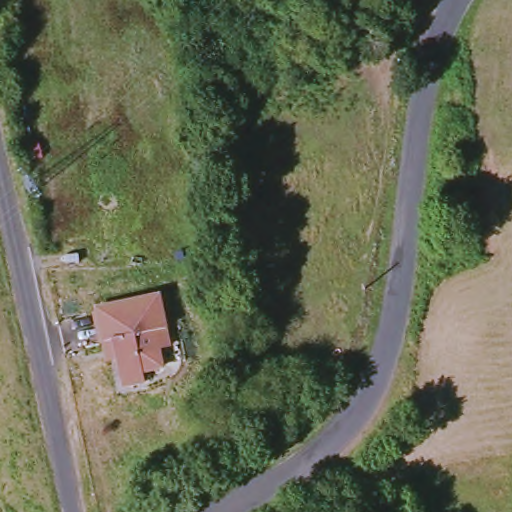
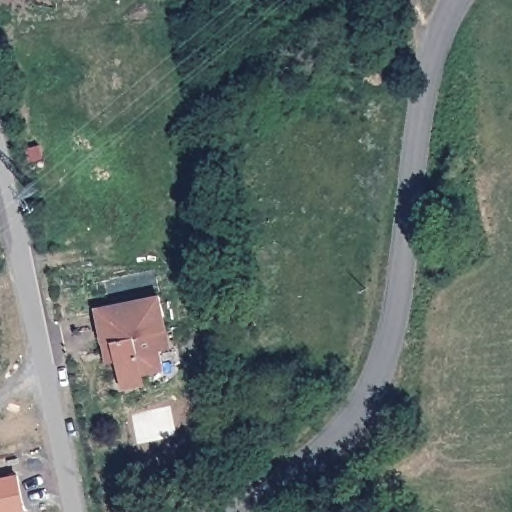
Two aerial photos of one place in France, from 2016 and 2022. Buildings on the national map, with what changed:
unchanged [(105,350),(98,308),(159,295),(165,327),(168,344),(158,346),(162,365),(143,368),(145,382),(122,385),(118,358),(107,360),(105,350)]
new [(17,475),(23,509),(11,512),(0,512),(0,479),(17,475)]

